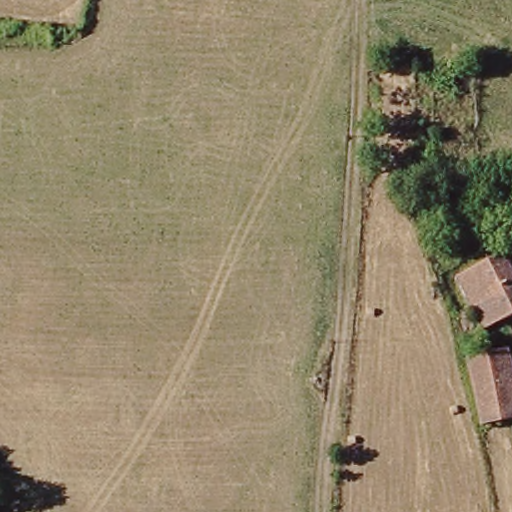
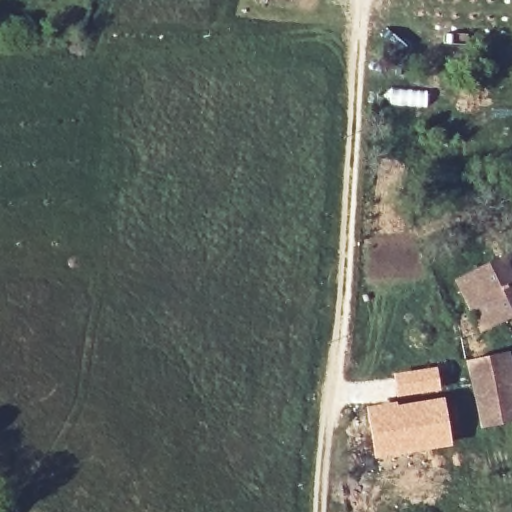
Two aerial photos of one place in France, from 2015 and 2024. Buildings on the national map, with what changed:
unchanged [(512,201),(512,209),(508,202),(512,201)]
unchanged [(488,326),(463,275),(511,253),(512,254),(512,316),(488,326)]
unchanged [(494,340),(498,355),(512,353),(512,421),(485,424),(473,345),(494,340)]
new [(437,366),(441,391),(396,397),(392,372),(437,366)]
new [(387,403),(409,402),(444,397),(453,446),(373,459),(364,406),(387,403)]

